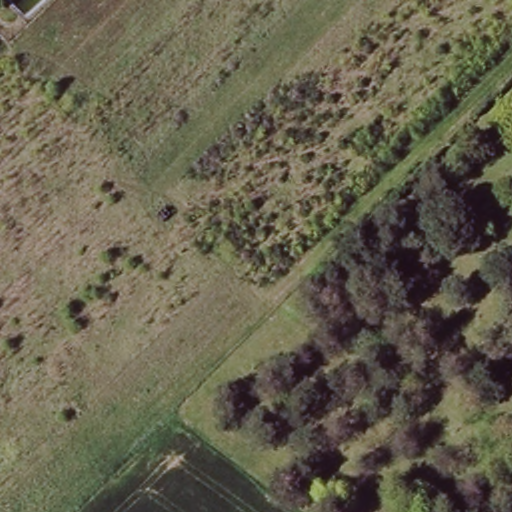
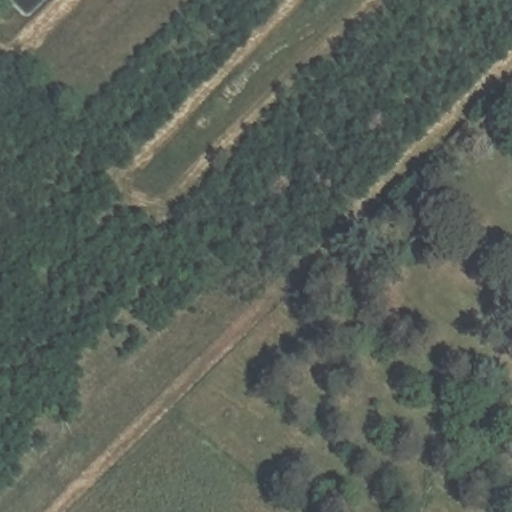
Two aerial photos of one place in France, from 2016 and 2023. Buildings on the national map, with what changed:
[]

